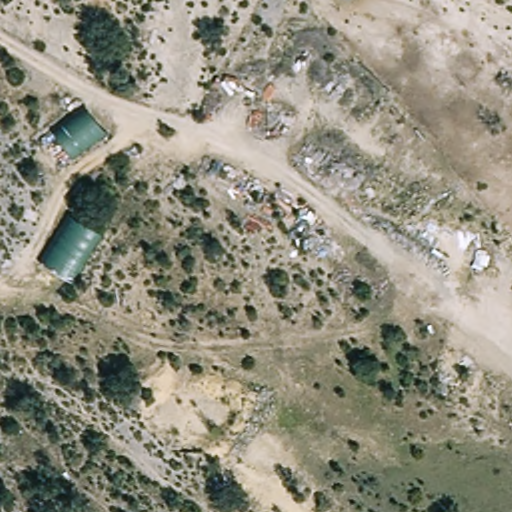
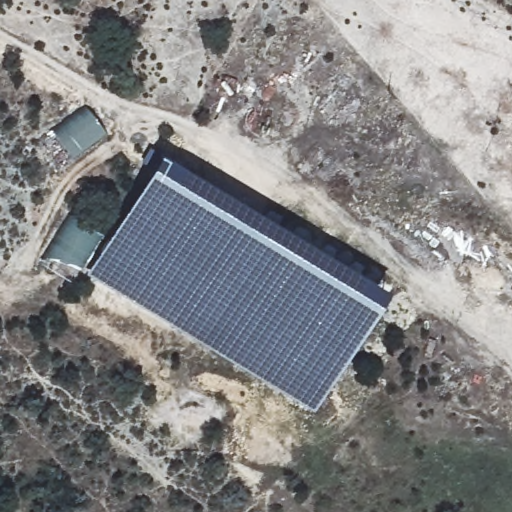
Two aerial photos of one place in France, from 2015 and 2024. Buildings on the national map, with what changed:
unchanged [(107,135),(56,167),(36,143),(88,107),(107,135)]
new [(386,288),(311,406),(85,271),(158,151),(386,288)]
unchanged [(101,230),(73,287),(41,266),(71,214),(101,230)]

